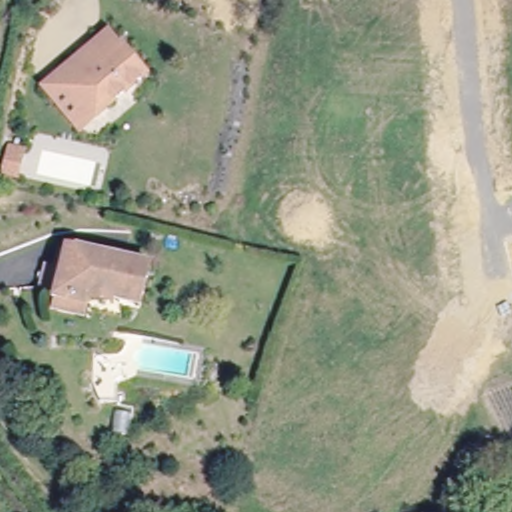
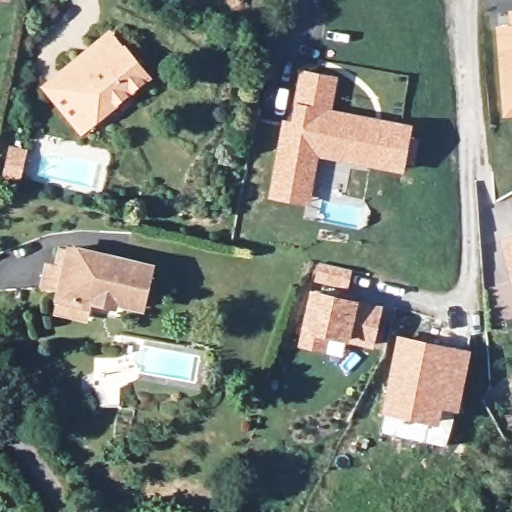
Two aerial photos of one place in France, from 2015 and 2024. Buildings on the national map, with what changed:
unchanged [(497,26),(510,24),(509,10),(512,10),(512,115),(503,116),(497,26)]
unchanged [(47,87),(61,76),(111,35),(146,77),(96,119),(82,130),(47,87)]
new [(282,119),(290,120),(299,69),(338,76),(332,108),(413,124),(404,173),(319,158),(309,206),(266,198),(282,119)]
new [(503,241),(512,239),(512,274),(503,241)]
unchanged [(62,311),(65,297),(66,293),(47,289),(53,266),(62,268),(67,249),(76,251),(77,248),(157,267),(147,307),(96,295),(94,304),(91,318),(62,311)]
new [(322,263),(350,269),(347,285),(318,279),(322,263)]
new [(312,289),(377,304),(368,340),(324,330),(320,345),(300,340),(303,325),(312,289)]
new [(398,336),(450,347),(465,350),(463,359),(451,420),(409,412),(383,407),(386,397),(398,336)]
unchanged [(120,404),(102,404),(95,386),(120,387),(120,404)]

